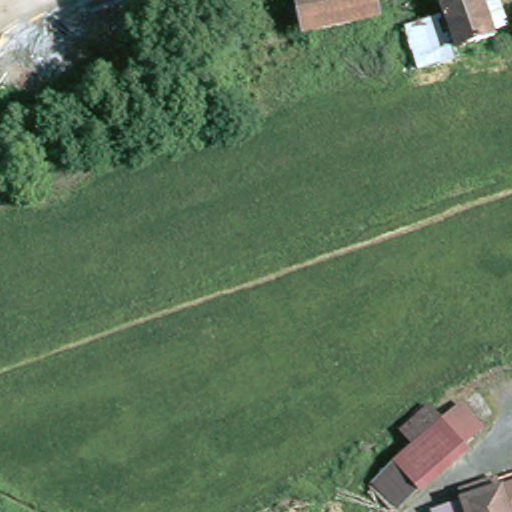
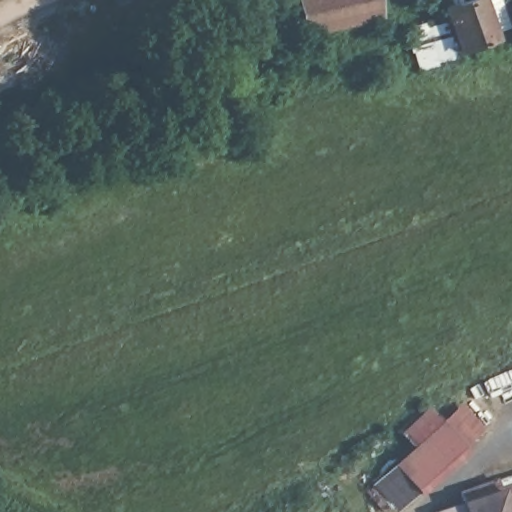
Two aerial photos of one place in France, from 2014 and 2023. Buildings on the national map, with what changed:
unchanged [(301,0),(380,0),(384,18),(309,35),(301,0)]
unchanged [(460,0),(472,0),(486,38),(449,52),(433,10),(460,0)]
unchanged [(410,512),(405,512),(387,494),(405,475),(391,460),(435,417),(470,453),(410,512)]
unchanged [(457,497),(492,485),(495,495),(509,491),(512,500),(512,512),(462,512),(461,508),(457,497)]
unchanged [(461,508),(462,512),(448,512),(461,508)]

